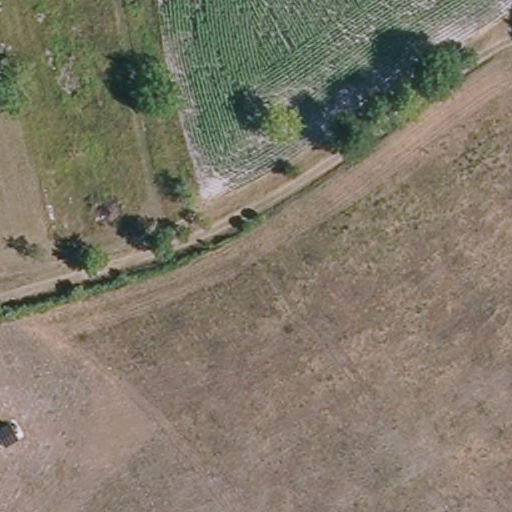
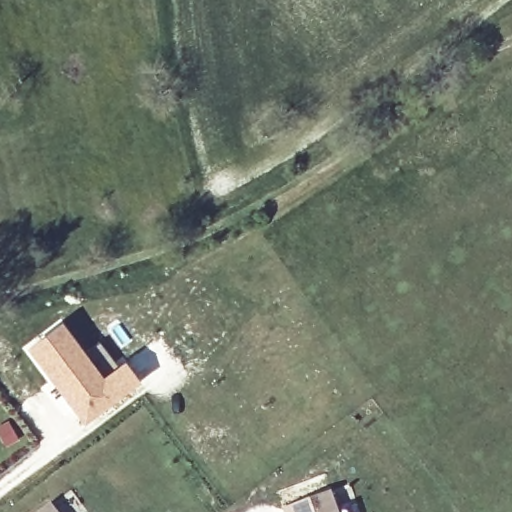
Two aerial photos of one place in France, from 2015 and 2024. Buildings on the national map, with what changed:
new [(83,353),(100,341),(120,366),(125,362),(138,380),(85,420),(30,347),(61,323),(83,353)]
new [(332,490),(340,512),(285,512),(284,508),(332,490)]
new [(39,512),(52,502),(59,512),(39,512)]

